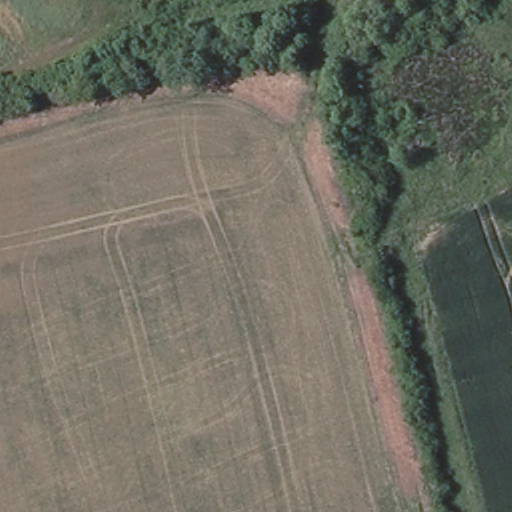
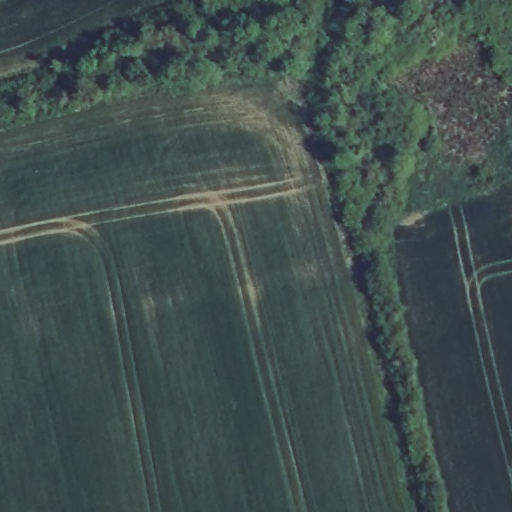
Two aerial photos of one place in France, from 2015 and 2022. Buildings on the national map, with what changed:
unchanged [(369,27),(367,26),(356,15),(356,5),(361,0),(406,0),(407,0),(406,6),(402,10),(406,15),(406,18),(407,19),(370,28),(369,27)]

